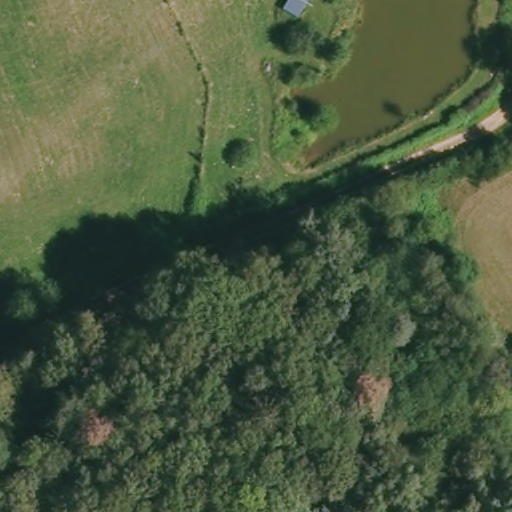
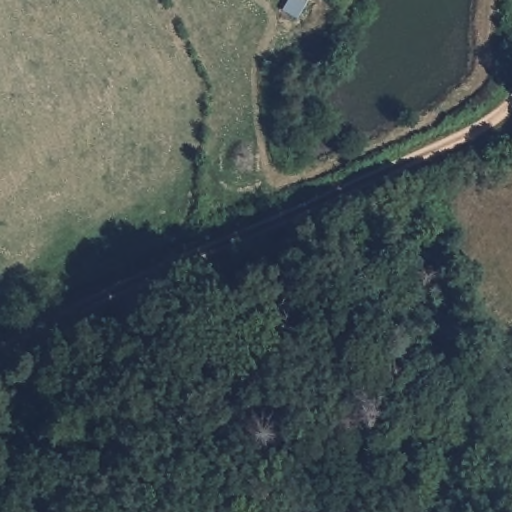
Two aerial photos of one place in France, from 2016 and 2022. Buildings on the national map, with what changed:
unchanged [(280,7),(284,0),(304,0),(295,14),(280,7)]

